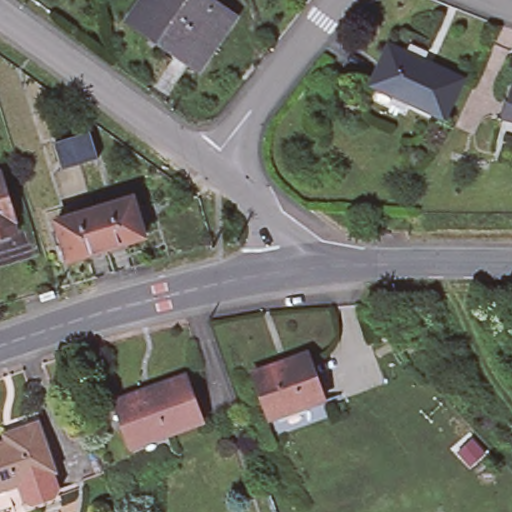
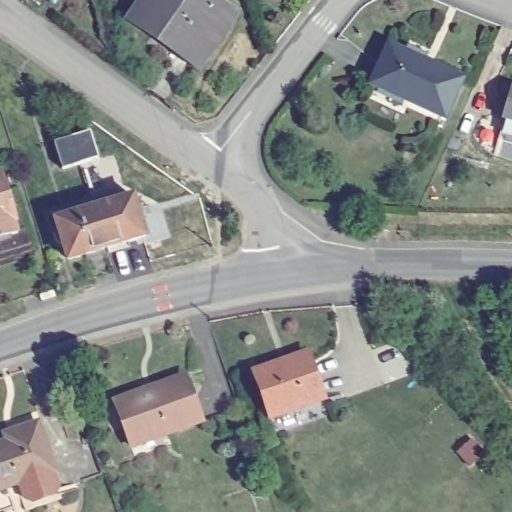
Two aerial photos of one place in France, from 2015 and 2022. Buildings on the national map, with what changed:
unchanged [(227,21),(197,63),(152,31),(150,35),(132,22),(147,0),(197,0),(227,21)]
unchanged [(387,45),(460,75),(443,114),(371,84),(387,45)]
unchanged [(512,117),(500,113),(510,83),(512,84),(512,117)]
unchanged [(52,140),(70,136),(90,131),(96,157),(77,162),(60,166),(52,140)]
unchanged [(15,224),(11,225),(15,235),(0,239),(0,180),(15,224)]
unchanged [(131,196),(143,235),(103,248),(92,209),(131,196)]
unchanged [(65,260),(53,221),(92,209),(103,248),(65,260)]
unchanged [(276,360),(308,349),(310,353),(324,394),(330,410),(278,429),(272,413),(255,367),(276,360)]
unchanged [(142,384),(144,388),(185,373),(202,417),(167,430),(165,425),(128,439),(111,395),(142,384)]
unchanged [(9,424),(33,415),(50,462),(12,476),(0,480),(0,438),(12,433),(9,424)]
unchanged [(50,462),(58,486),(22,500),(12,476),(50,462)]

